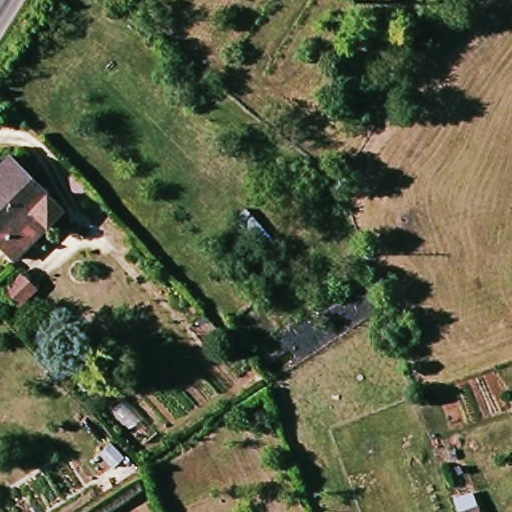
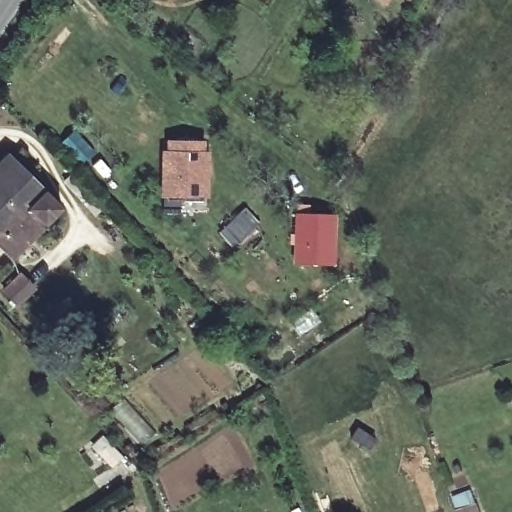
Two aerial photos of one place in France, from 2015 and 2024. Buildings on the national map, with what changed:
unchanged [(373,0),(385,0),(382,6),(373,0)]
new [(163,141),(211,142),(210,198),(161,196),(163,141)]
unchanged [(10,162),(55,208),(9,253),(0,244),(0,172),(10,162)]
new [(332,264),(321,264),(294,263),(295,206),(305,207),(305,217),(322,217),(333,217),(332,264)]
new [(245,209),(258,223),(237,242),(225,227),(245,209)]
unchanged [(470,490),(477,512),(455,512),(450,496),(470,490)]

